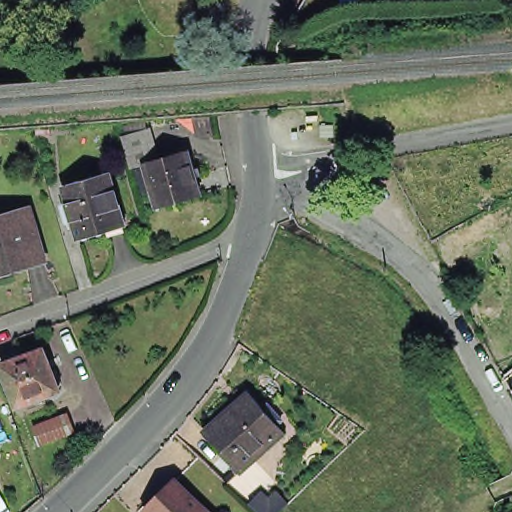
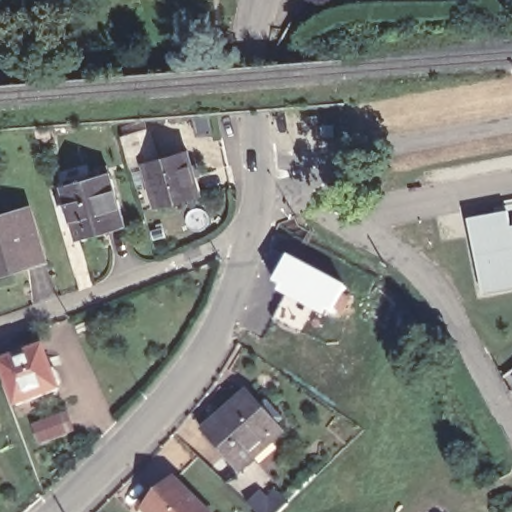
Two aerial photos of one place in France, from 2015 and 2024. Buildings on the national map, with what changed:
unchanged [(307,120),(307,116),(317,116),(317,120),(307,120)]
unchanged [(211,190),(168,202),(156,159),(142,163),(137,147),(132,130),(161,122),(165,139),(170,153),(199,145),(211,190)]
unchanged [(334,125),(334,137),(322,137),(322,125),(334,125)]
unchanged [(85,232),(68,180),(114,166),(130,219),(85,232)]
new [(483,294),(467,215),(509,209),(512,223),(512,289),(483,294)]
unchanged [(44,256),(0,269),(0,218),(30,210),(44,256)]
new [(349,288),(332,319),(275,289),(292,257),(349,288)]
unchanged [(2,358),(45,343),(54,365),(59,365),(64,377),(58,380),(60,385),(19,400),(2,358)]
unchanged [(285,432),(242,472),(205,432),(250,393),(285,432)]
unchanged [(35,426),(69,413),(75,432),(42,445),(35,426)]
unchanged [(291,503),(282,512),(259,512),(250,505),(229,485),(242,472),(261,493),(270,501),(279,492),(291,503)]
unchanged [(150,510),(180,480),(212,512),(152,512),(150,510)]

